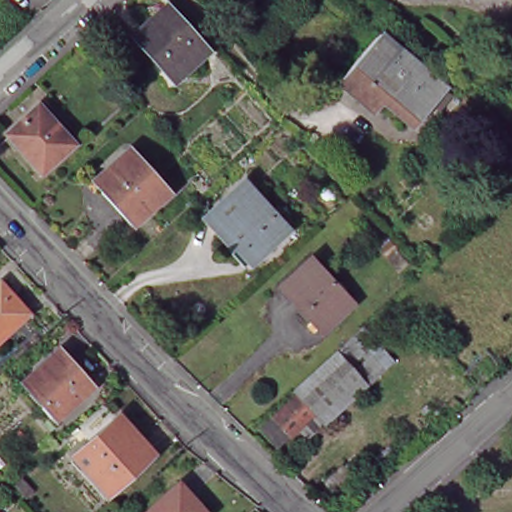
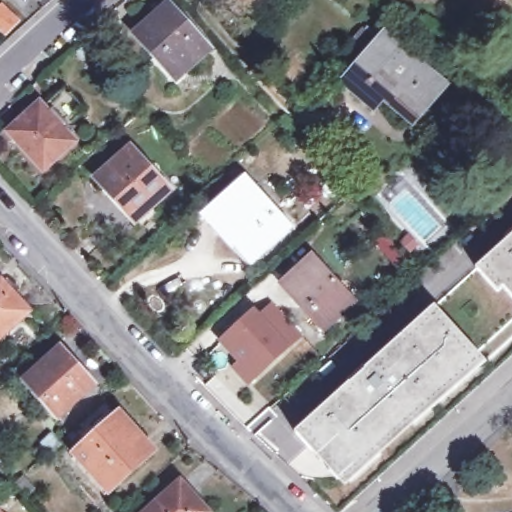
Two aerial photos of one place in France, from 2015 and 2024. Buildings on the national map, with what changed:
unchanged [(170,4),(210,49),(182,74),(167,56),(161,61),(137,34),(170,4)]
unchanged [(345,81),(382,38),(383,36),(455,98),(440,114),(430,105),(415,122),(387,99),(377,110),(345,81)]
unchanged [(43,170),(10,134),(38,109),(59,132),(63,129),(75,141),(43,170)]
unchanged [(97,179),(131,149),(170,193),(137,223),(97,179)]
unchanged [(210,216),(247,182),(287,228),(251,261),(210,216)]
unchanged [(377,244),(388,234),(400,248),(412,263),(402,273),(377,244)]
new [(512,342),(487,364),(437,305),(467,277),(512,236),(512,342)]
unchanged [(325,330),(285,286),(315,259),(355,303),(325,330)]
unchanged [(32,312),(0,340),(0,283),(3,280),(32,312)]
new [(224,339),(255,312),(262,319),(276,305),(302,334),(262,371),(250,381),(237,367),(243,361),(224,339)]
new [(435,307),(485,362),(348,482),(303,436),(301,438),(294,431),(435,307)]
demolished [(302,391),(371,327),(400,359),(315,437),(305,426),(284,445),(268,428),(305,394),(302,391)]
unchanged [(27,379),(61,348),(73,361),(95,385),(91,389),(62,417),(27,379)]
unchanged [(156,453),(111,494),(75,453),(120,414),(156,453)]
unchanged [(62,442),(50,452),(41,442),(52,432),(62,442)]
demolished [(335,491),(323,479),(335,468),(338,471),(345,465),(357,481),(346,490),(342,485),(335,491)]
unchanged [(15,484),(24,476),(36,489),(28,498),(20,489),(15,484)]
unchanged [(186,478),(197,491),(213,509),(209,512),(149,512),(186,478)]

